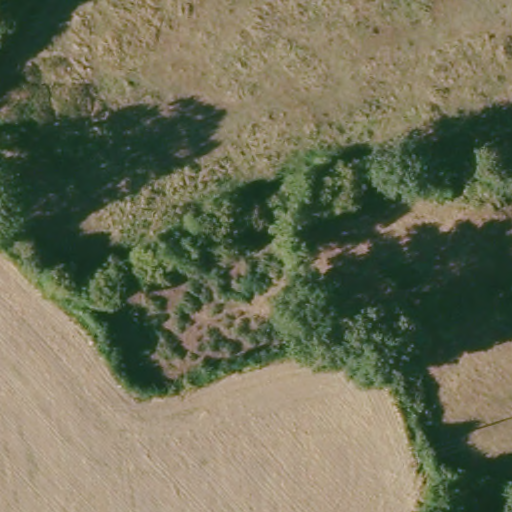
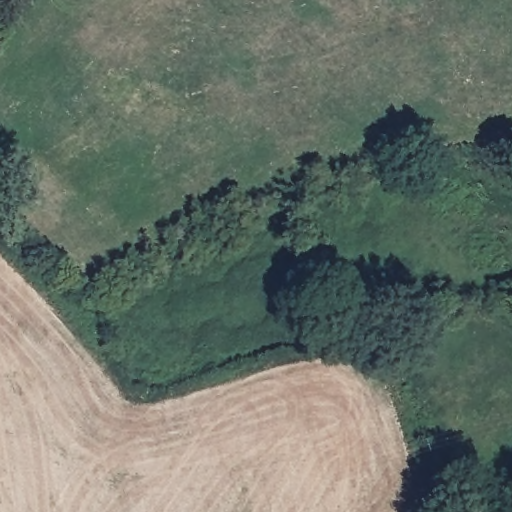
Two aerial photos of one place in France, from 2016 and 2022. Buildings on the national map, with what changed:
[]

